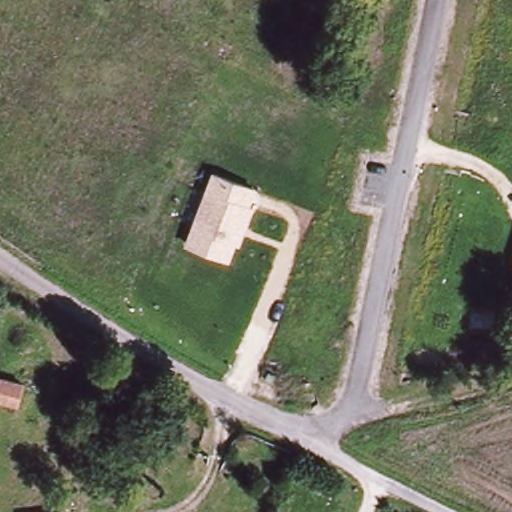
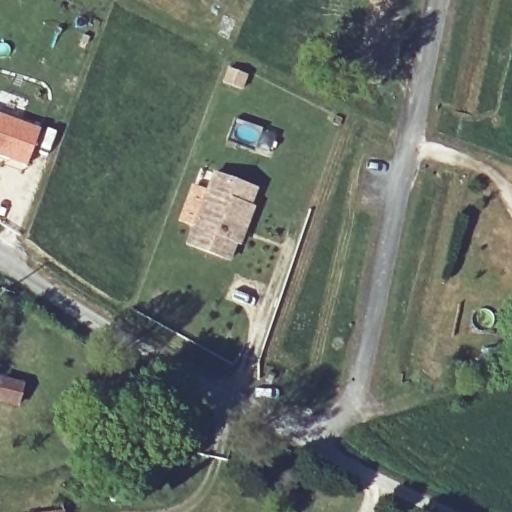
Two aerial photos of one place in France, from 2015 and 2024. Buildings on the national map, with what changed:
new [(45,130),(46,127),(57,131),(49,152),(35,145),(26,166),(0,155),(0,113),(45,130)]
unchanged [(258,187),(252,204),(256,206),(244,244),(238,244),(231,260),(186,245),(211,171),(258,187)]
unchanged [(27,381),(20,408),(0,402),(0,375),(27,381)]

